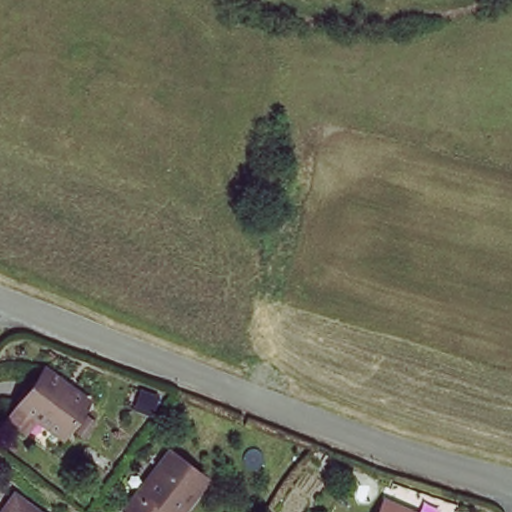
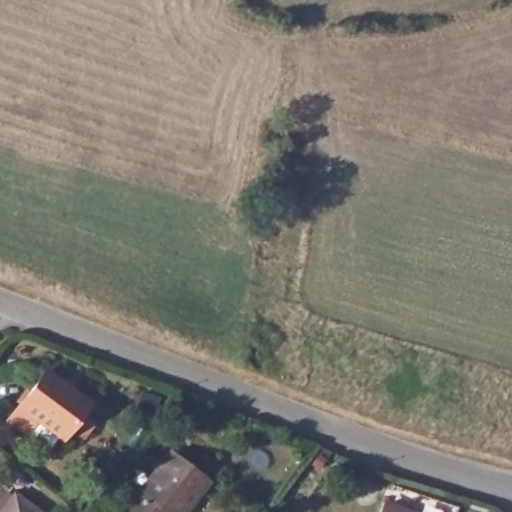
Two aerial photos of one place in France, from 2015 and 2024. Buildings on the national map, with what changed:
unchanged [(88,403),(62,439),(17,410),(44,374),(88,403)]
unchanged [(205,474),(176,512),(174,512),(168,509),(166,512),(140,512),(128,503),(171,448),(205,474)]
unchanged [(445,512),(394,512),(401,496),(445,512)]
unchanged [(36,512),(3,512),(15,497),(36,512)]

